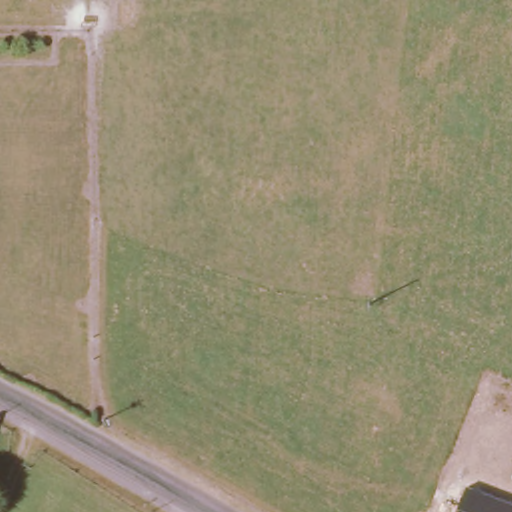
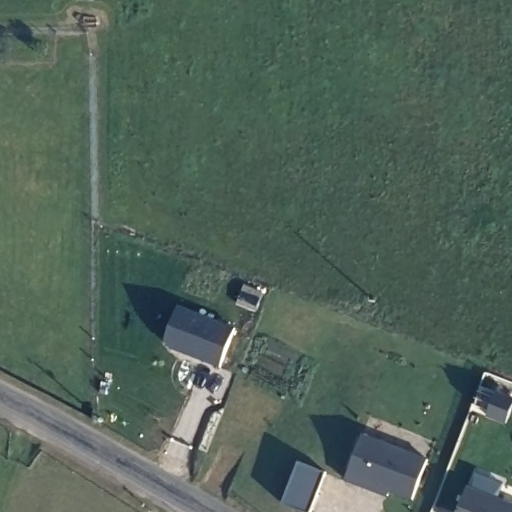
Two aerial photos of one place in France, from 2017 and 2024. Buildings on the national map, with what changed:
new [(235,327),(219,366),(165,344),(180,306),(235,327)]
new [(365,433),(428,457),(412,500),(392,492),(390,497),(346,481),(356,455),(365,433)]
new [(311,512),(285,502),(299,463),(325,473),(311,512)]
unchanged [(512,502),(512,512),(457,512),(468,485),(512,502)]

